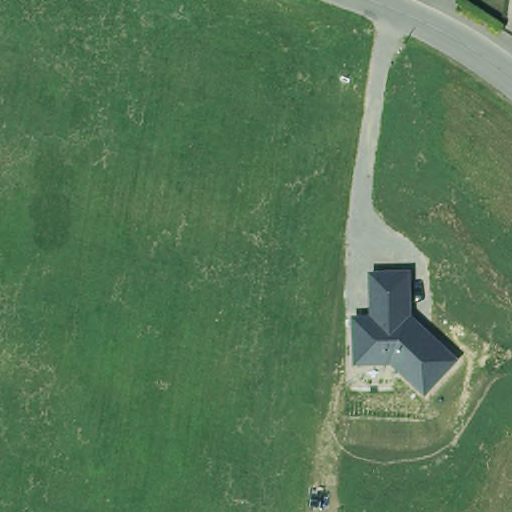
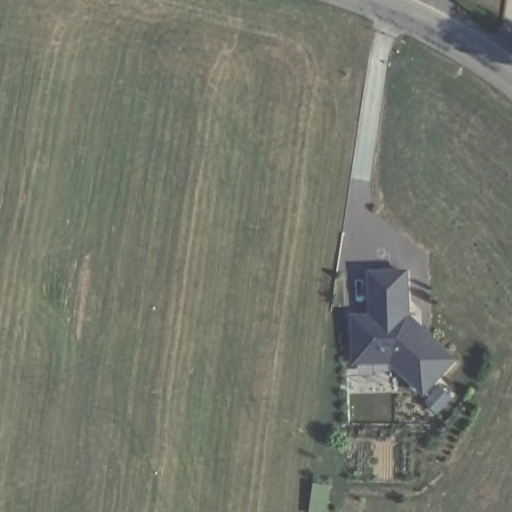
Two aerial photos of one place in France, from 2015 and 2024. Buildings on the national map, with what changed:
unchanged [(412,315),(459,361),(425,397),(388,365),(354,366),(351,316),(371,315),(369,272),(411,271),(412,315)]

